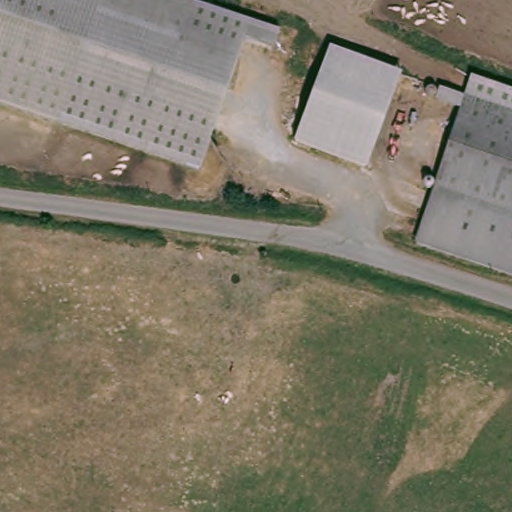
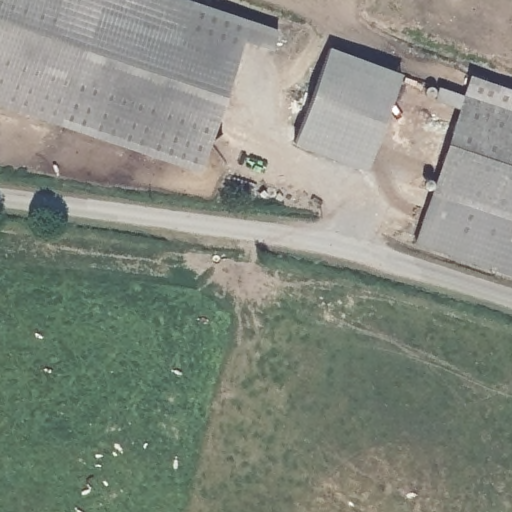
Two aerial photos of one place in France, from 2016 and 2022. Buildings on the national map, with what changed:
unchanged [(0,0),(207,0),(249,13),(202,164),(0,102),(0,0)]
unchanged [(402,72),(365,170),(293,143),(329,45),(402,72)]
unchanged [(512,84),(512,273),(417,234),(433,197),(473,101),(471,100),(448,90),(453,79),(475,89),(482,72),(512,84)]

